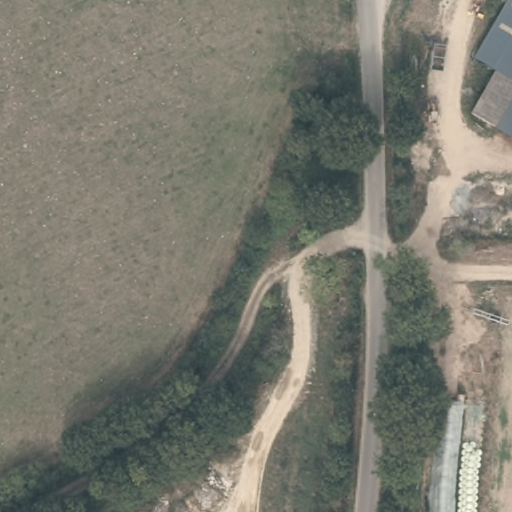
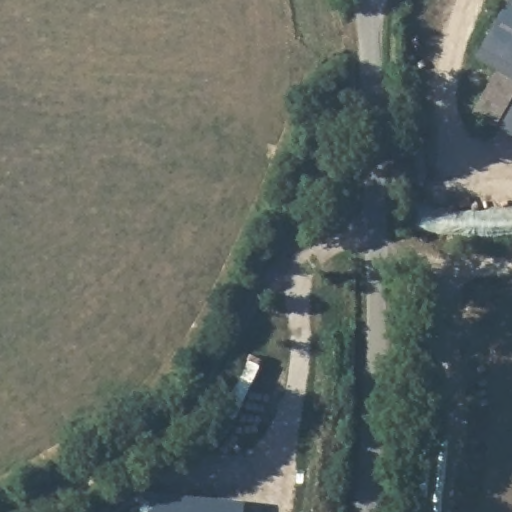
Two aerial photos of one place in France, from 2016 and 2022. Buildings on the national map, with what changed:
unchanged [(488,70),(467,58),(502,0),(512,0),(512,141),(465,114),(488,70)]
new [(242,502),(240,512),(138,512),(140,492),(242,502)]

